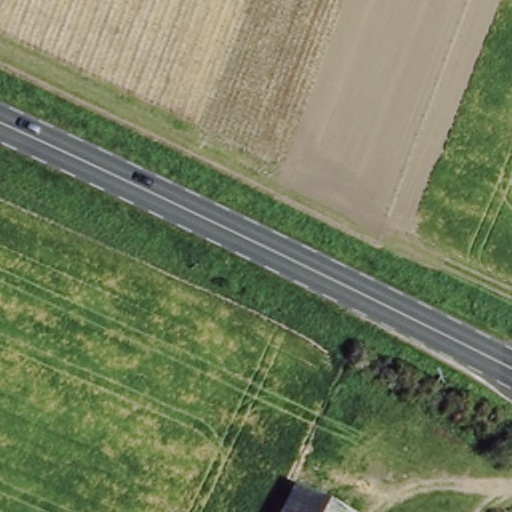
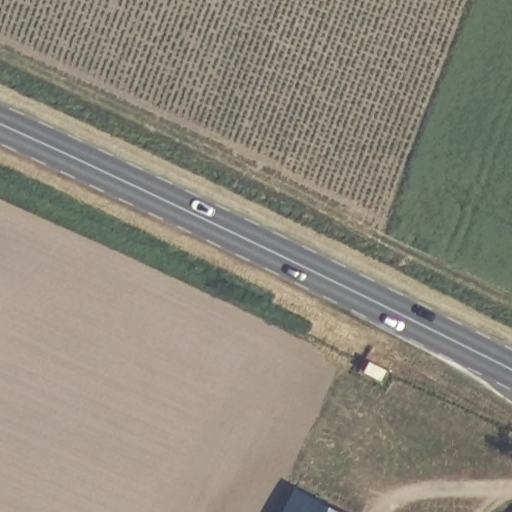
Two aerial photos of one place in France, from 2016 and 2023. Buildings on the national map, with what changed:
unchanged [(295,479),(359,512),(278,512),(295,479)]

